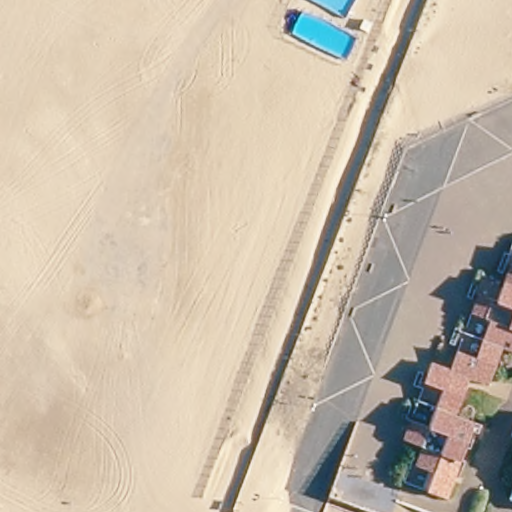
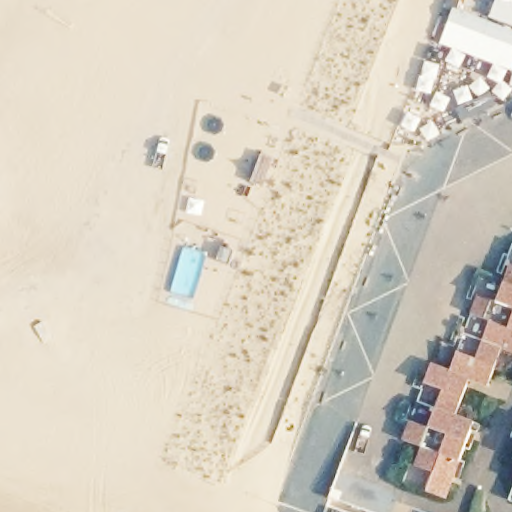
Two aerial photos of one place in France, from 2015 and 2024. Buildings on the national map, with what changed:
new [(496,0),(512,0),(512,27),(487,19),(496,0)]
new [(452,7),(487,19),(512,27),(512,72),(439,43),(452,7)]
unchanged [(431,472),(416,466),(422,448),(416,446),(404,442),(411,422),(428,428),(443,392),(425,386),(427,376),(432,365),(449,371),(456,353),(473,360),(490,323),(471,316),(476,302),(478,296),(497,303),(511,268),(512,268),(512,354),(503,350),(488,388),(472,381),(458,414),(475,421),(446,499),(424,490),(431,472)]
unchanged [(511,466),(512,463),(512,467),(511,466)]
unchanged [(397,512),(368,512),(331,498),(340,472),(403,496),(397,512)]
unchanged [(506,507),(512,491),(512,510),(506,507)]

